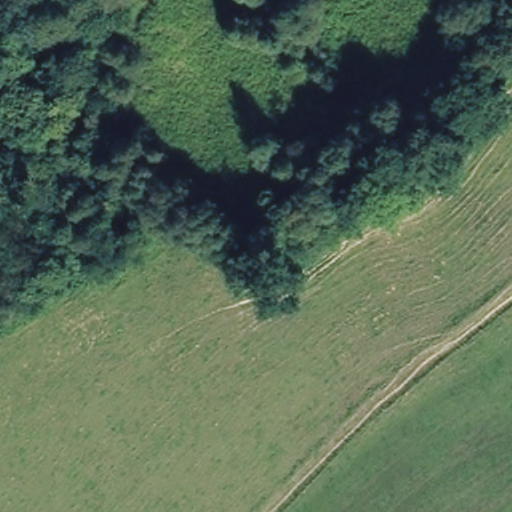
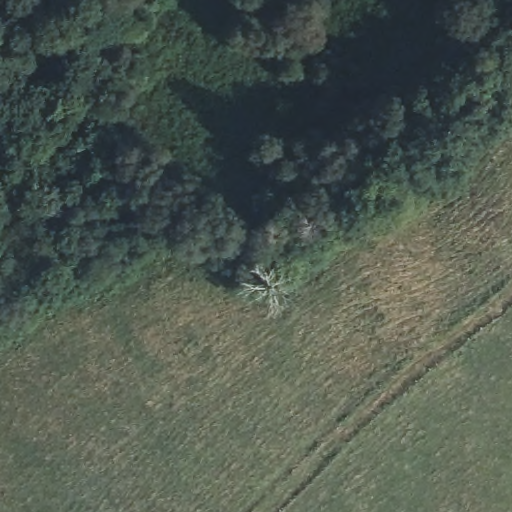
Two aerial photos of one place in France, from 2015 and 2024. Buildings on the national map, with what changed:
[]

